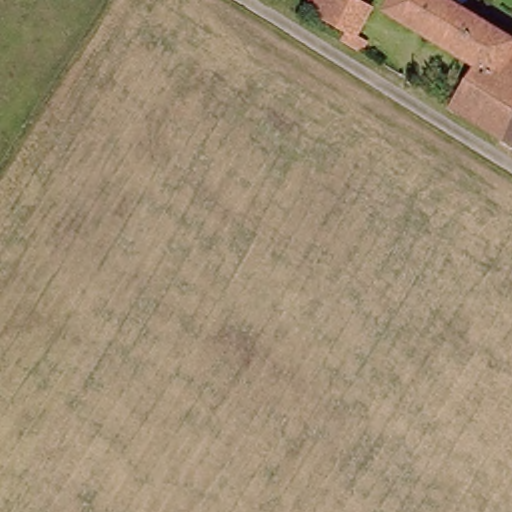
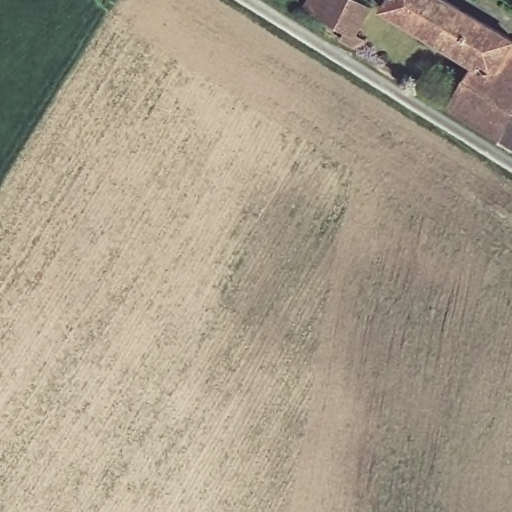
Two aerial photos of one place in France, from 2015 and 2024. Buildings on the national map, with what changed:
unchanged [(372,13),(356,37),(362,42),(357,52),(342,42),(346,33),(320,17),(302,7),(307,0),(352,0),(372,13)]
unchanged [(512,120),(500,139),(451,110),(477,71),(383,13),(392,0),(448,0),(512,38),(512,120)]
unchanged [(512,120),(512,147),(500,139),(512,120)]

